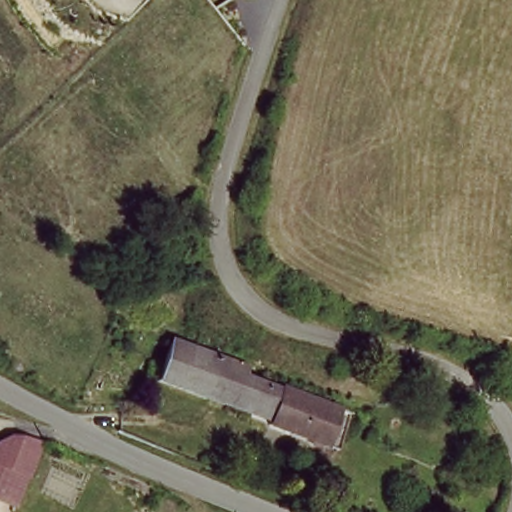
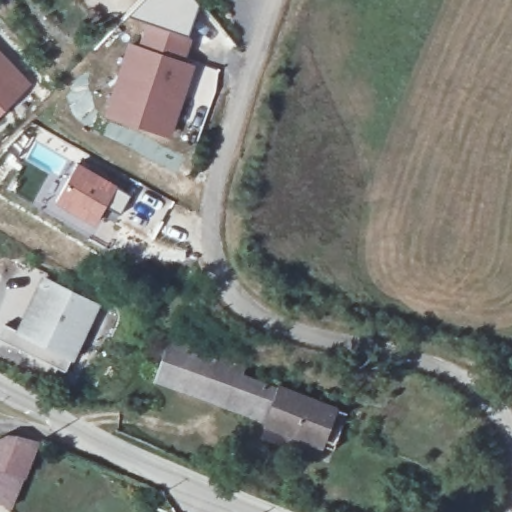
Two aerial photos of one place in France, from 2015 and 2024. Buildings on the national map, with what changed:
new [(184,62),(195,67),(170,138),(103,116),(128,43),(137,47),(147,22),(193,37),(184,62)]
new [(31,85),(0,114),(0,52),(31,85)]
new [(75,162),(129,195),(118,213),(106,207),(91,232),(47,201),(75,162)]
new [(48,280),(100,307),(67,372),(0,337),(7,323),(22,330),(48,280)]
unchanged [(323,444),(268,424),(270,417),(158,380),(172,341),(336,408),(323,444)]
unchanged [(12,508),(0,503),(0,443),(16,437),(40,442),(12,508)]

